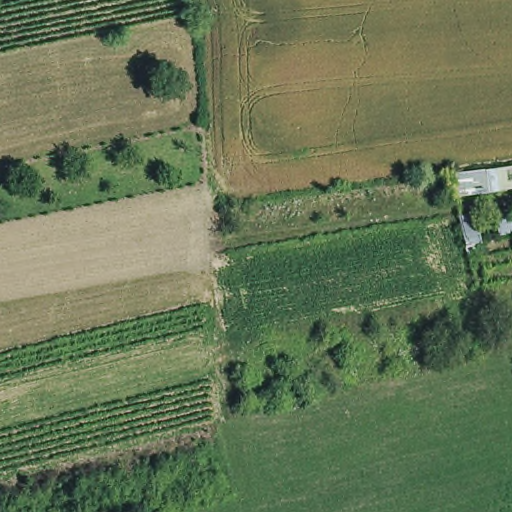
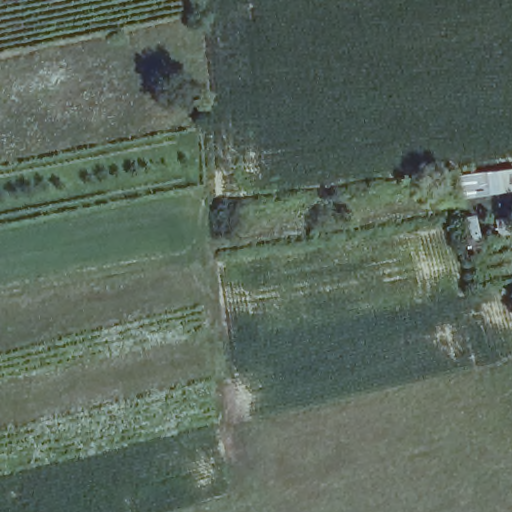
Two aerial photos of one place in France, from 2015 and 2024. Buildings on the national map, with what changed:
unchanged [(456,205),(453,175),(512,168),(512,195),(456,205)]
unchanged [(476,218),(482,247),(467,250),(461,220),(476,218)]

